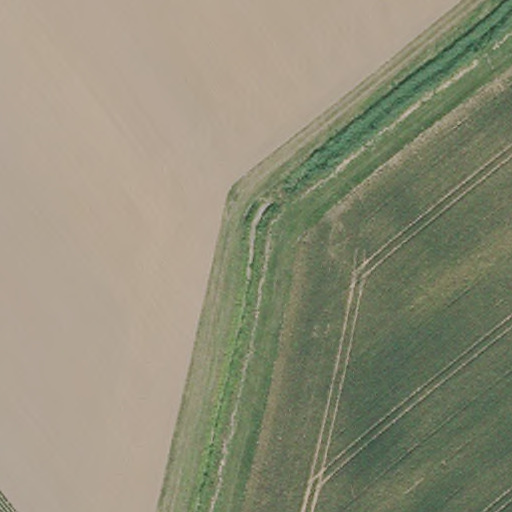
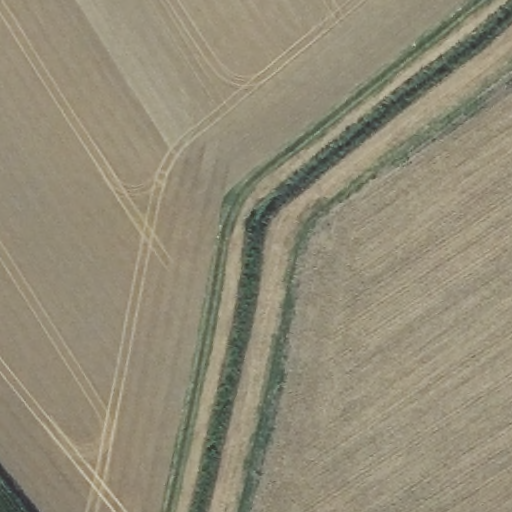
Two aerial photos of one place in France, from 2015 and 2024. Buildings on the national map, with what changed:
[]

